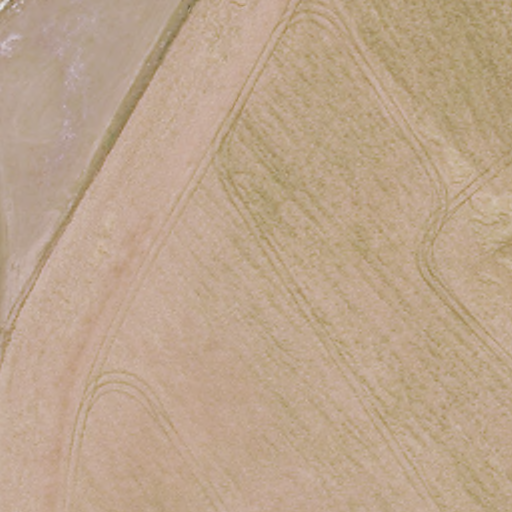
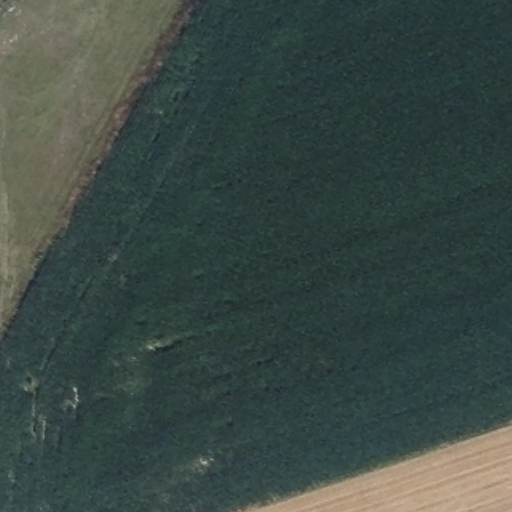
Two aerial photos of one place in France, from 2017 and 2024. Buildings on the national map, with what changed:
[]

